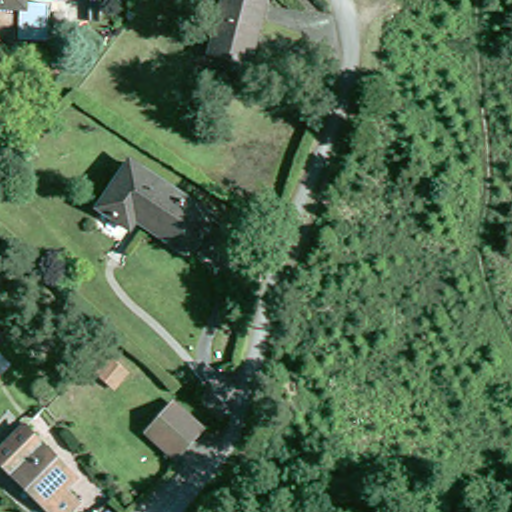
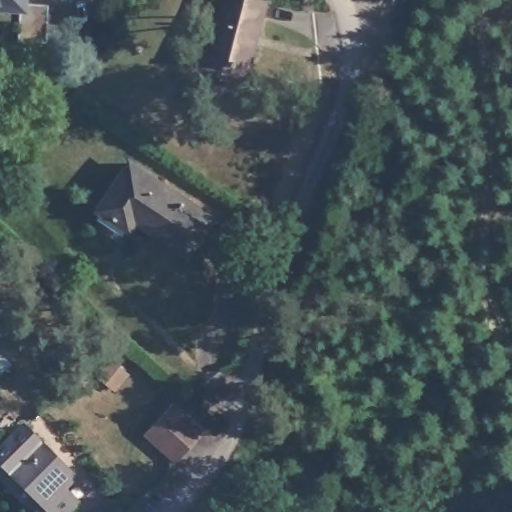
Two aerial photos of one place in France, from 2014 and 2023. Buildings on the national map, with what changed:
unchanged [(0,0),(23,0),(22,3),(0,2),(0,0)]
unchanged [(216,60),(231,0),(244,0),(270,7),(254,69),(216,60)]
unchanged [(188,253),(138,219),(131,228),(102,208),(132,163),(212,217),(188,253)]
unchanged [(150,432),(175,406),(202,431),(177,458),(150,432)]
unchanged [(70,484),(65,488),(77,504),(68,512),(51,512),(0,461),(0,454),(26,427),(66,466),(59,473),(70,484)]

